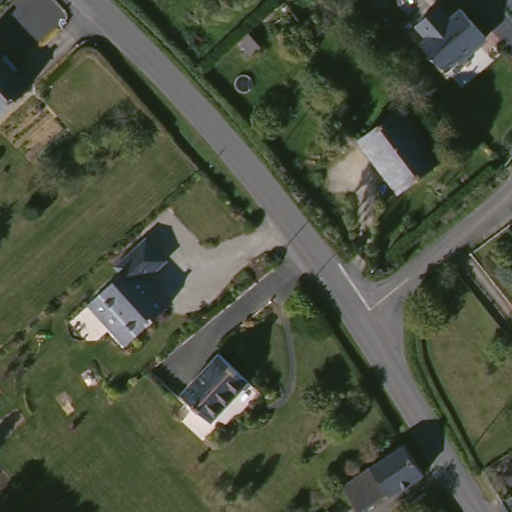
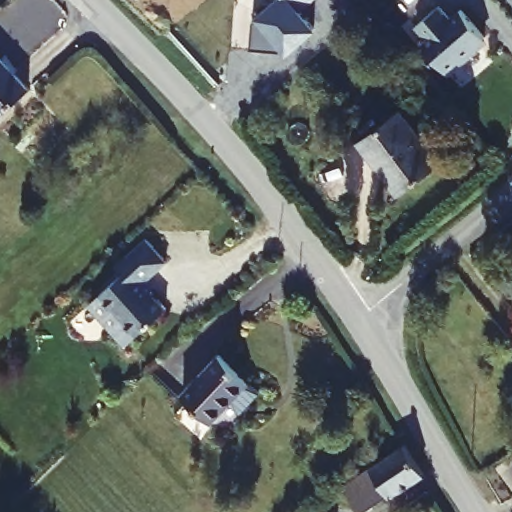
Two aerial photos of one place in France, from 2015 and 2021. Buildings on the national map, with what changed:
new [(254,26),(260,21),(255,16),(266,6),(277,7),(285,0),(316,0),(300,14),(316,32),(294,51),(282,49),(282,54),(253,51),(254,26)]
unchanged [(489,42),(448,70),(417,16),(442,0),(445,0),(451,8),(462,0),(463,0),(489,42)]
unchanged [(1,117),(0,116),(0,57),(30,91),(1,117)]
unchanged [(403,187),(367,136),(408,107),(444,158),(403,187)]
unchanged [(113,330),(92,305),(112,287),(132,269),(124,260),(153,234),(174,256),(145,283),(166,306),(146,324),(125,343),(113,330)]
unchanged [(250,386),(209,421),(183,390),(225,356),(250,386)]
unchanged [(387,500),(385,496),(361,512),(355,512),(340,492),(403,449),(421,477),(387,500)]

